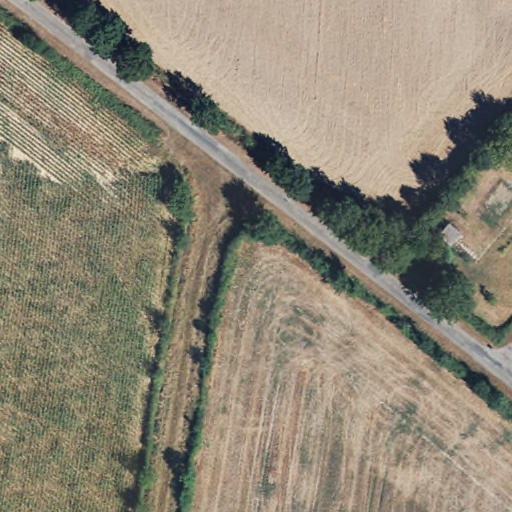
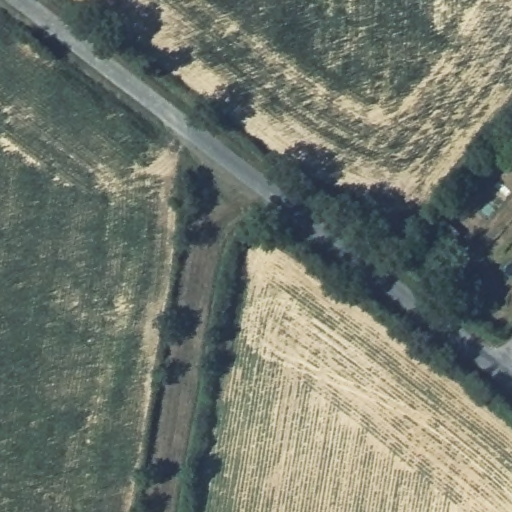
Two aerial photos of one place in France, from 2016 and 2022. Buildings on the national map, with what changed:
unchanged [(512,117),(512,130),(506,125),(512,117)]

